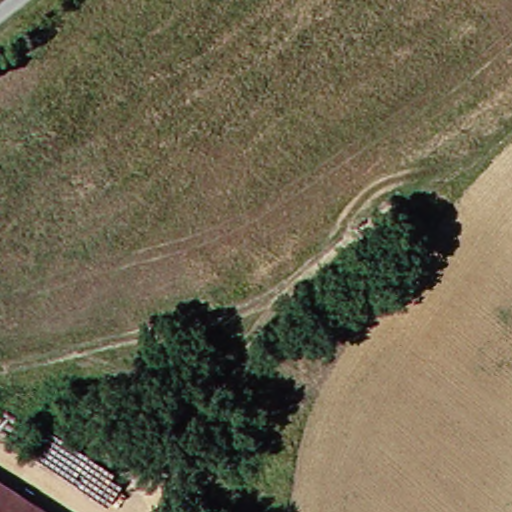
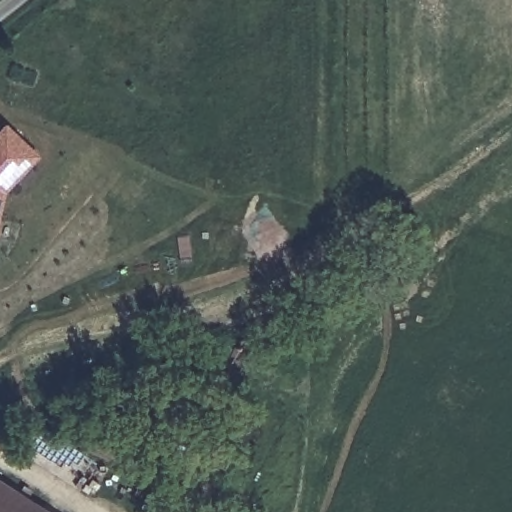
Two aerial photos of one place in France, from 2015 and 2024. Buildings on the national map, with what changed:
new [(40,158),(5,193),(0,215),(0,138),(9,129),(40,158)]
unchanged [(0,488),(38,512),(0,512),(0,488)]

